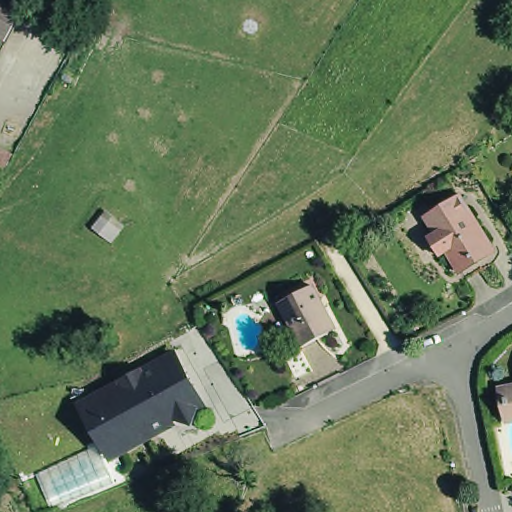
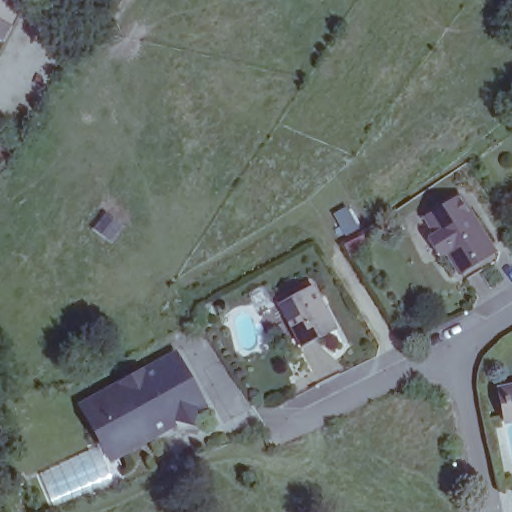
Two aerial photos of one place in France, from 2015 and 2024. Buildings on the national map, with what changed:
unchanged [(0,38),(0,0),(24,0),(3,40),(0,38)]
unchanged [(457,195),(489,247),(457,266),(447,250),(439,255),(427,235),(436,231),(427,215),(457,195)]
unchanged [(312,289),(335,332),(300,350),(277,306),(312,289)]
unchanged [(102,422),(87,397),(180,347),(210,405),(117,449),(102,422)]
unchanged [(507,417),(505,402),(503,402),(502,395),(505,395),(503,385),(512,383),(512,416),(507,417)]
unchanged [(102,422),(117,449),(210,405),(214,413),(111,464),(120,481),(55,510),(40,475),(102,449),(83,400),(87,397),(102,422)]

